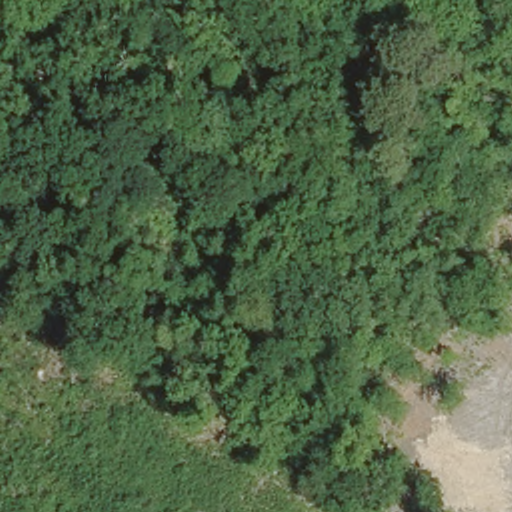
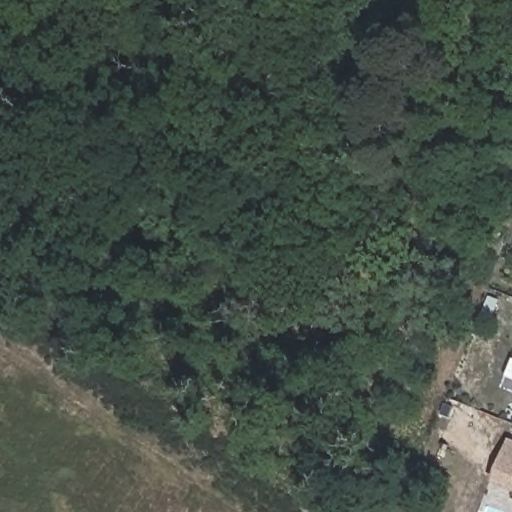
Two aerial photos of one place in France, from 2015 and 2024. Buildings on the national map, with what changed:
new [(491,481),(509,439),(512,441),(512,490),(491,481)]

